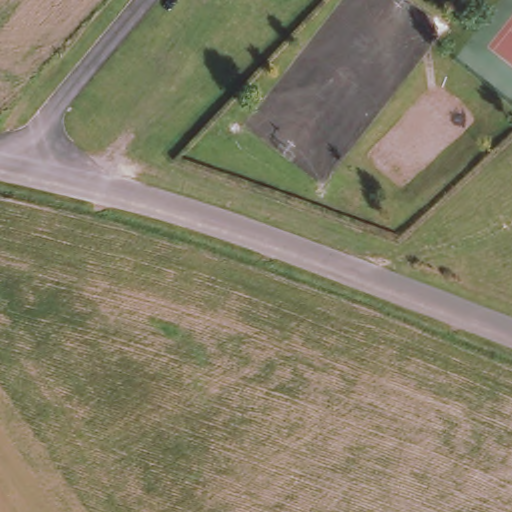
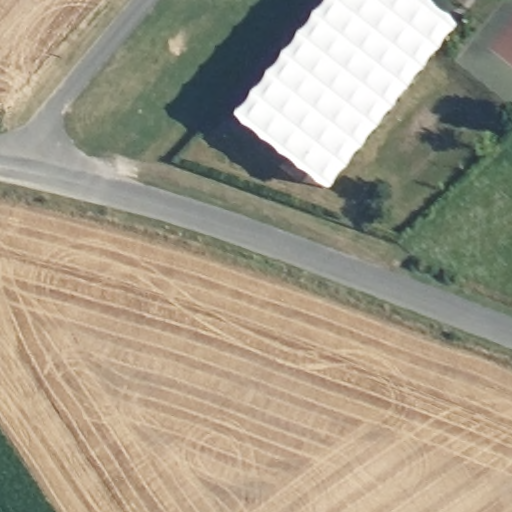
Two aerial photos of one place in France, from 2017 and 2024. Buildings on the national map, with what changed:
new [(340,0),(418,0),(452,25),(330,187),(246,124),(340,0)]

